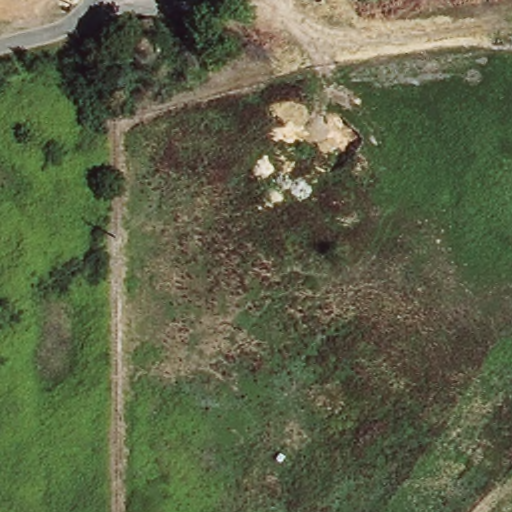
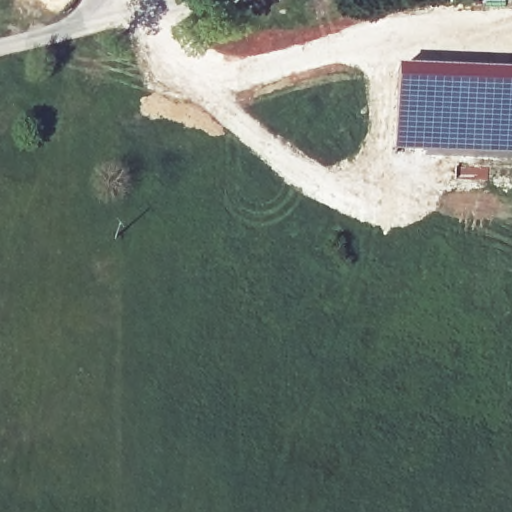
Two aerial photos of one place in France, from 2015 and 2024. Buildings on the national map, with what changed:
unchanged [(130,38),(128,26),(155,22),(155,27),(160,57),(136,62),(134,66),(110,71),(102,44),(130,38)]
new [(397,70),(512,75),(512,161),(500,161),(394,154),(397,70)]

